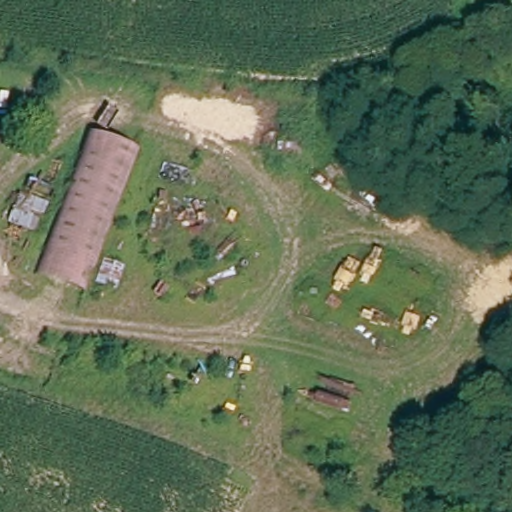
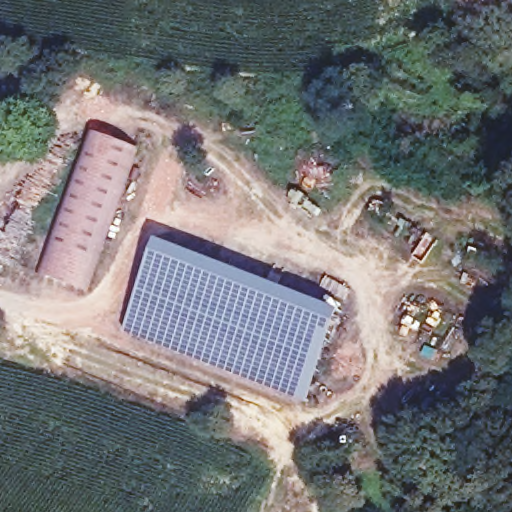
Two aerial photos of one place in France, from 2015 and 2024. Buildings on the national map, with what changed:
unchanged [(54,236),(91,135),(145,155),(106,258),(54,236)]
unchanged [(91,298),(38,278),(54,236),(106,258),(91,298)]
new [(158,240),(344,310),(311,399),(124,328),(158,240)]

